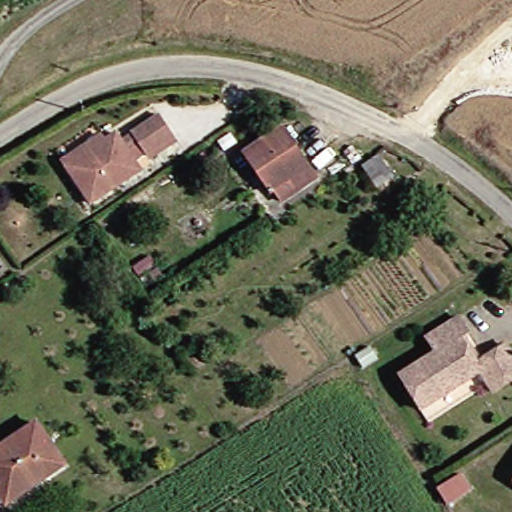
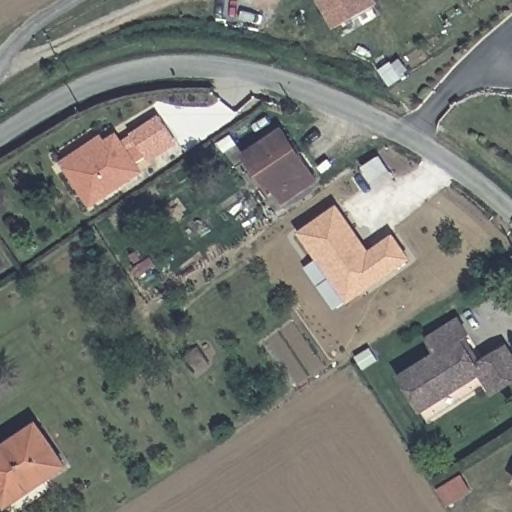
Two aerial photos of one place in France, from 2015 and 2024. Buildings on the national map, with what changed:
new [(320,0),(373,0),(375,4),(334,26),(320,0)]
unchanged [(71,168),(67,163),(106,136),(110,142),(121,135),(125,141),(163,116),(178,138),(140,164),(145,171),(95,204),(71,168)]
unchanged [(287,203),(280,192),(276,194),(267,182),(249,155),(269,141),(286,129),(321,179),(287,203)]
unchanged [(392,177),(376,188),(363,168),(379,157),(392,177)]
new [(369,250),(393,234),(411,260),(347,304),(298,232),(338,204),(369,250)]
unchanged [(512,384),(497,394),(484,373),(425,410),(404,377),(440,354),(431,339),(462,319),(472,334),(464,339),(480,365),(510,347),(512,350),(512,384)]
unchanged [(44,480),(41,476),(3,503),(0,498),(0,449),(35,424),(64,466),(44,480)]
unchanged [(447,507),(437,491),(461,476),(471,492),(447,507)]

